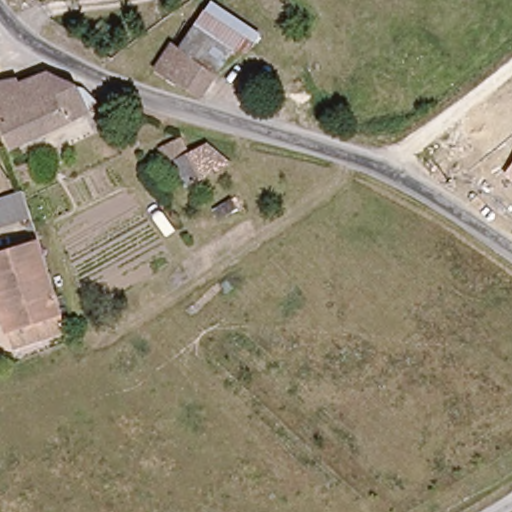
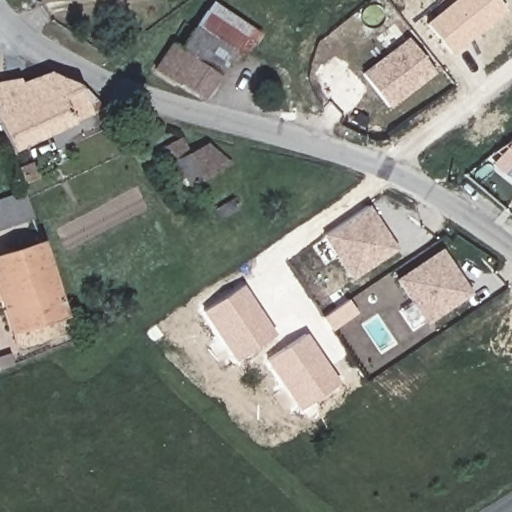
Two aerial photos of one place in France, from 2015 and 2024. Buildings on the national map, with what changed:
new [(452,0),(496,0),(505,10),(451,55),(424,23),(452,0)]
unchanged [(202,4),(256,38),(234,46),(193,20),(202,4)]
unchanged [(219,69),(178,42),(193,20),(234,46),(219,69)]
unchanged [(204,92),(179,76),(177,78),(153,62),(170,37),(178,42),(219,69),(204,92)]
new [(389,107),(361,72),(406,37),(433,73),(389,107)]
unchanged [(0,128),(0,76),(7,75),(15,73),(16,76),(44,66),(70,77),(84,85),(97,101),(84,108),(7,144),(0,128)]
unchanged [(185,147),(203,137),(222,160),(183,179),(179,172),(177,173),(167,156),(165,158),(157,144),(177,132),(185,147)]
unchanged [(512,165),(512,180),(505,174),(512,165)]
unchanged [(12,193),(22,189),(32,217),(0,228),(0,197),(12,193)]
new [(357,277),(328,234),(367,206),(371,203),(379,215),(400,248),(357,277)]
unchanged [(11,344),(6,328),(0,311),(0,251),(35,240),(57,312),(62,328),(11,344)]
new [(471,297),(431,323),(402,279),(446,250),(467,282),(475,294),(471,297)]
new [(234,360),(201,310),(240,283),(273,333),(234,360)]
new [(263,360),(303,333),(337,382),(298,410),(263,360)]

